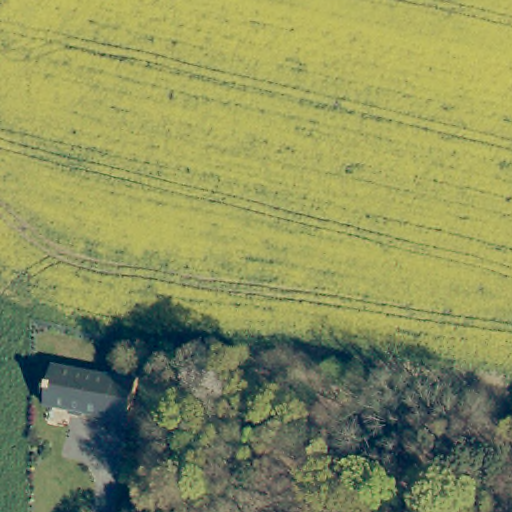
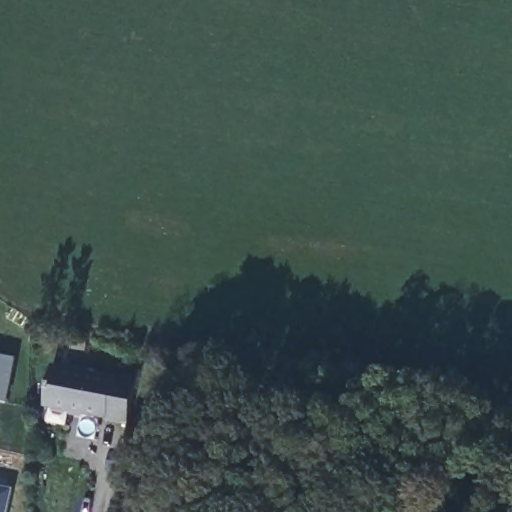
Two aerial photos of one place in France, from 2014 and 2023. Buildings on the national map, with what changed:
new [(0,400),(0,355),(17,358),(8,401),(0,400)]
unchanged [(44,411),(52,370),(114,384),(114,381),(137,386),(133,403),(128,429),(105,425),(105,422),(80,417),(72,416),(44,411)]
new [(10,512),(0,512),(0,495),(13,497),(10,512)]

